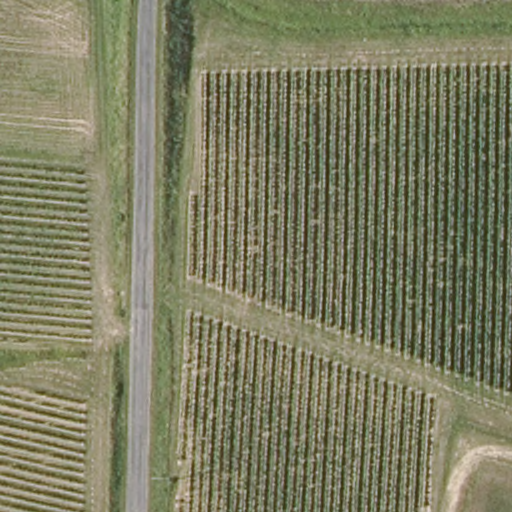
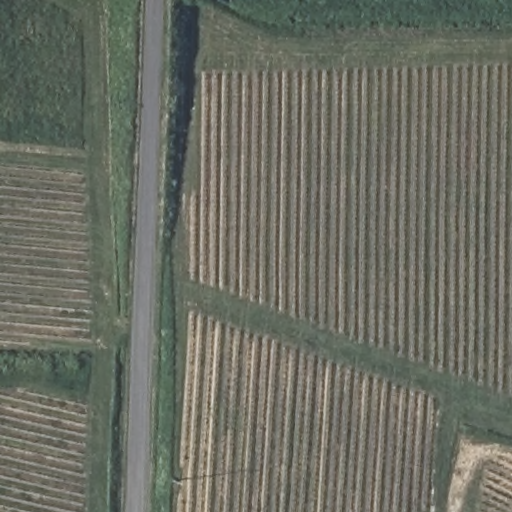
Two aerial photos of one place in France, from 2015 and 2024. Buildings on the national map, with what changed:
[]

